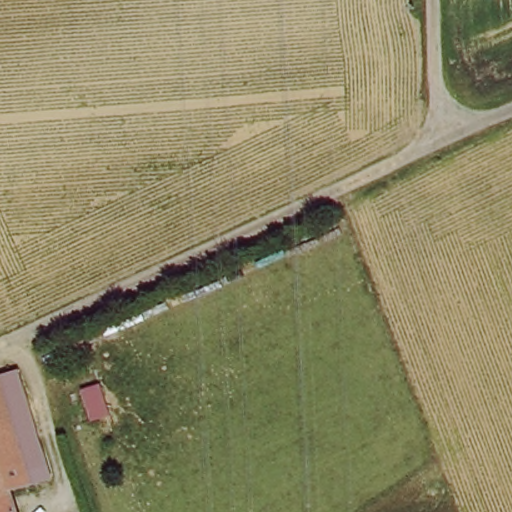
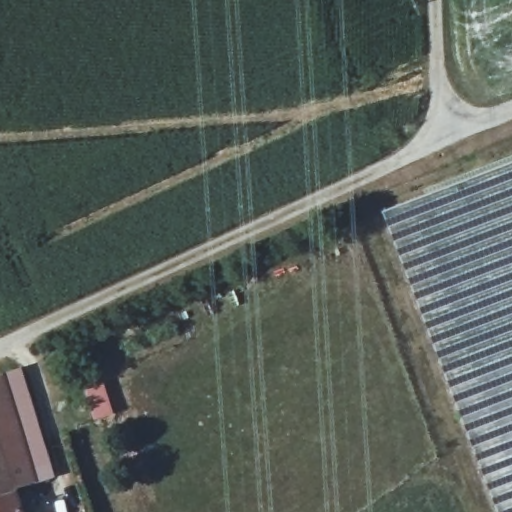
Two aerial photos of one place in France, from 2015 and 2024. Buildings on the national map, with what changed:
new [(496,512),(381,213),(512,163),(512,512),(496,512)]
unchanged [(23,368),(54,471),(36,478),(33,471),(5,375),(23,368)]
unchanged [(33,471),(36,478),(20,485),(26,512),(0,512),(0,377),(5,375),(33,471)]
new [(103,388),(113,416),(95,422),(85,394),(103,388)]

